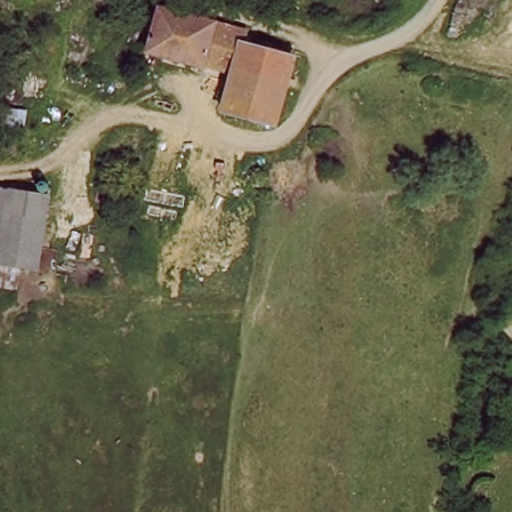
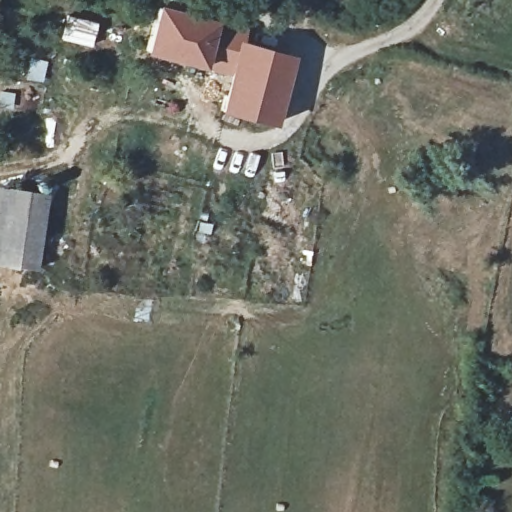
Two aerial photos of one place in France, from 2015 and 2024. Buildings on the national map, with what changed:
unchanged [(255,31),(252,44),(297,56),(279,126),(226,113),(234,76),(155,56),(165,9),(255,31)]
unchanged [(53,193),(41,268),(25,265),(23,283),(0,279),(0,185),(53,193)]

